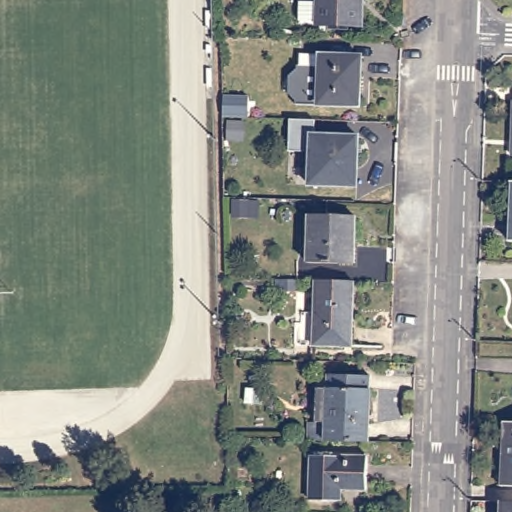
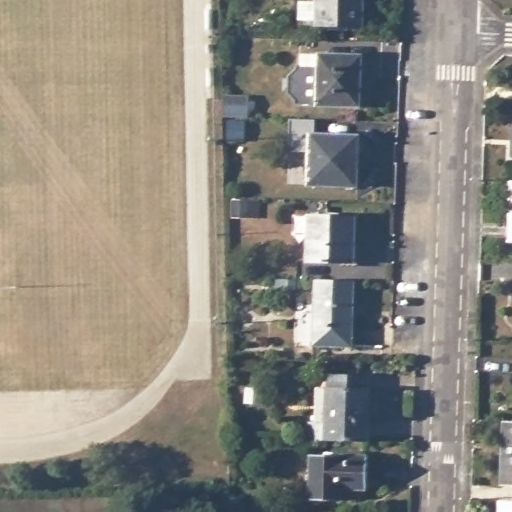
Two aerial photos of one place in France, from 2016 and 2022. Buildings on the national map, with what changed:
unchanged [(362,28),(316,27),(317,0),(363,0),(362,28)]
unchanged [(319,56),(362,57),(360,109),(318,108),(319,56)]
unchanged [(249,99),(248,118),(223,118),(223,117),(224,98),(249,99)]
unchanged [(310,136),(358,138),(357,188),(309,186),(310,136)]
unchanged [(309,216),(354,218),(354,264),(307,263),(309,216)]
unchanged [(511,242),(512,218),(512,242),(511,242)]
unchanged [(354,282),(353,329),(346,329),(345,347),(313,345),(315,281),(354,282)]
unchanged [(293,283),(293,293),(277,293),(277,282),(293,283)]
unchanged [(316,423),(317,389),(327,389),(328,375),(371,377),(369,442),(326,441),(327,423),(316,423)]
unchanged [(247,389),(262,390),(261,405),(245,404),(247,389)]
unchanged [(512,422),(512,487),(502,487),(504,422),(512,422)]
unchanged [(310,456),(368,458),(368,490),(341,489),(341,501),(309,500),(310,456)]
unchanged [(505,512),(506,502),(512,502),(512,512),(505,512)]

